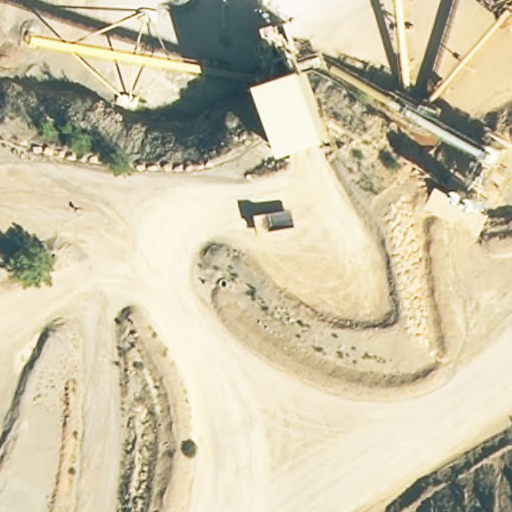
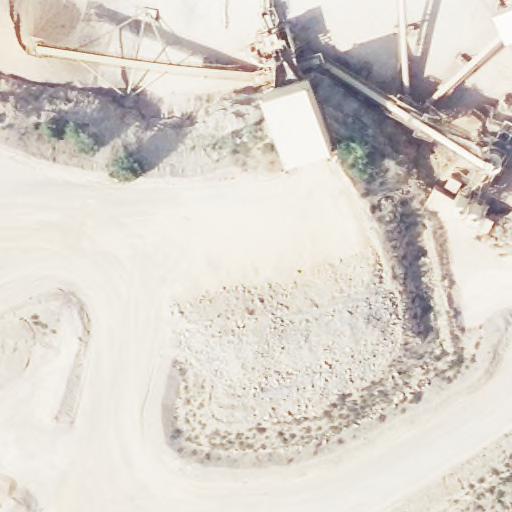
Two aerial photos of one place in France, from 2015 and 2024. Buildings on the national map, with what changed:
unchanged [(310,65),(334,137),(286,149),(265,77),(310,65)]

